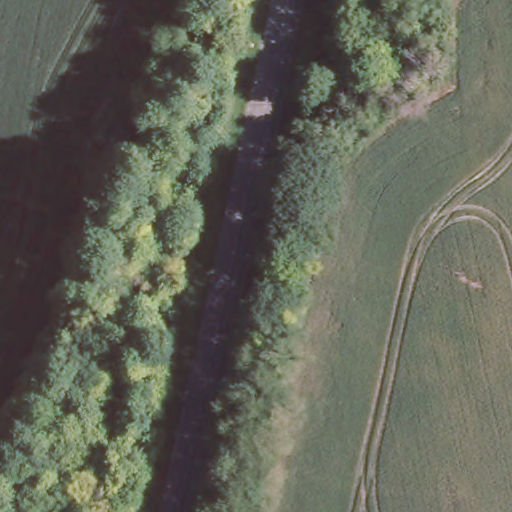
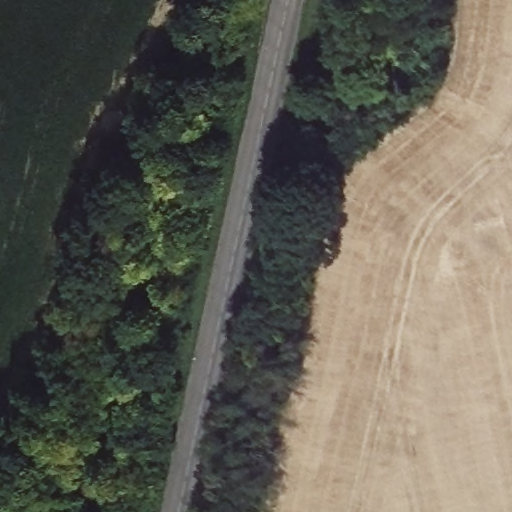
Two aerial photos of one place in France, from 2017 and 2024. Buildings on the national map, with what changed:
unchanged [(351,73),(362,51),(378,58),(367,81),(351,73)]

